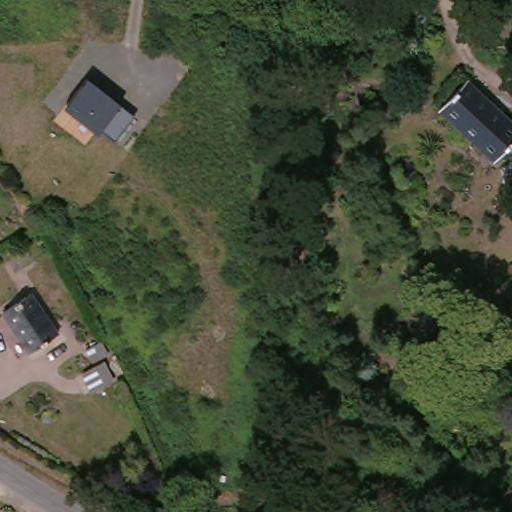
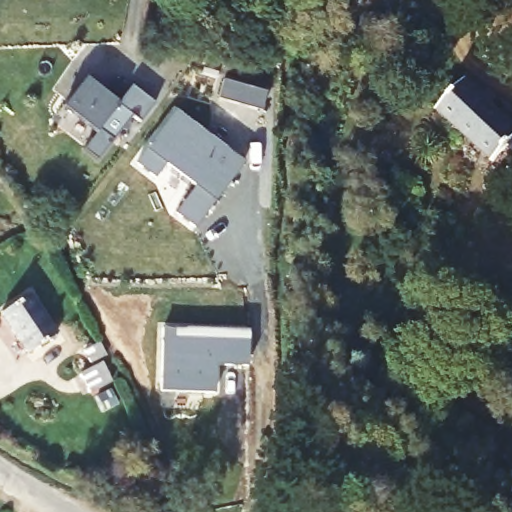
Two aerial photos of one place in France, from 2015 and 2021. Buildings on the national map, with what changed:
unchanged [(114,140),(99,130),(94,135),(61,110),(85,80),(121,107),(132,116),(114,140)]
unchanged [(512,127),(512,137),(489,162),(432,110),(461,80),(512,127)]
new [(176,110),(244,162),(195,226),(175,211),(194,186),(165,164),(156,177),(135,162),(176,110)]
unchanged [(0,327),(0,321),(26,305),(51,343),(23,361),(0,327)]
new [(163,327),(249,330),(248,367),(218,365),(217,393),(161,391),(163,327)]
unchanged [(103,340),(110,352),(94,361),(87,348),(103,340)]
unchanged [(112,379),(90,390),(81,371),(104,361),(112,379)]

